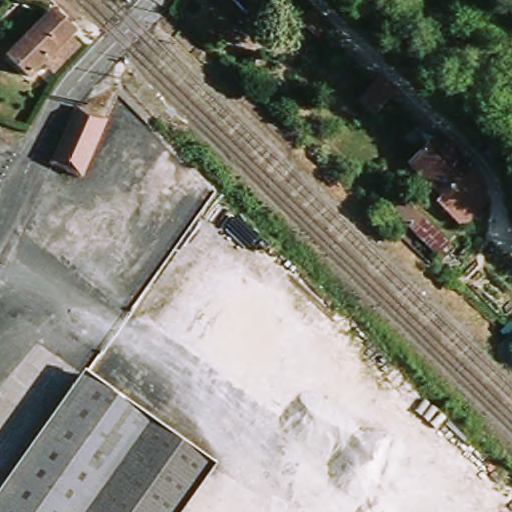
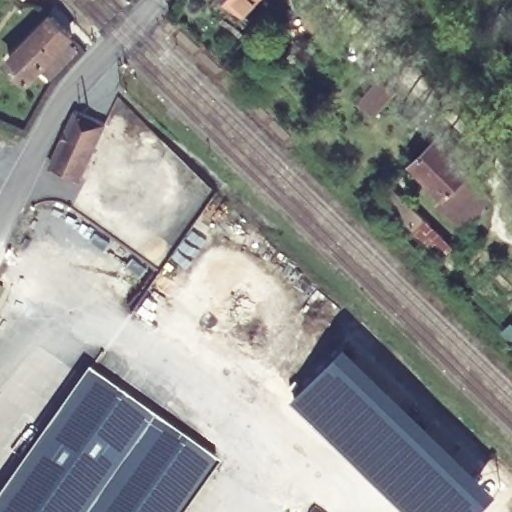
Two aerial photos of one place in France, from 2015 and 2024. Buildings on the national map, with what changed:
unchanged [(260,11),(247,0),(270,0),(260,11)]
unchanged [(28,79),(10,58),(50,17),(70,36),(68,38),(80,50),(53,81),(40,67),(28,79)]
unchanged [(55,164),(71,114),(101,125),(84,174),(55,164)]
unchanged [(405,167),(441,128),(496,190),(465,224),(405,167)]
unchanged [(377,196),(393,182),(454,245),(439,262),(377,196)]
new [(377,383),(492,493),(475,512),(409,512),(336,440),(292,395),(341,346),(377,383)]
unchanged [(145,424),(85,512),(0,512),(0,493),(78,380),(145,424)]
unchanged [(180,512),(85,512),(145,424),(210,467),(180,512)]

